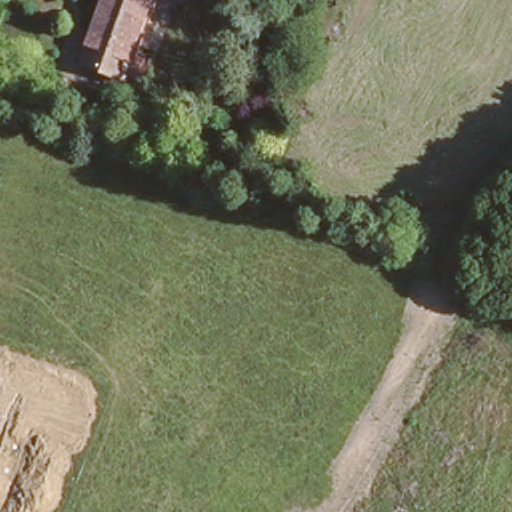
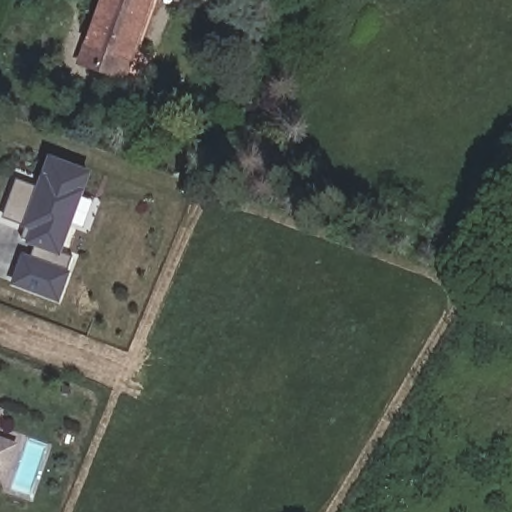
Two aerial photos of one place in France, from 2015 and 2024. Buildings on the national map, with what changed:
unchanged [(101,0),(154,0),(127,73),(81,55),(101,0)]
new [(35,247),(27,244),(28,241),(21,239),(25,227),(3,219),(18,180),(38,186),(50,157),(93,173),(63,253),(74,257),(69,272),(71,273),(60,303),(11,285),(22,254),(31,257),(35,247)]
new [(3,410),(0,418),(0,409),(3,410)]
new [(20,444),(8,474),(0,472),(0,437),(20,444)]

